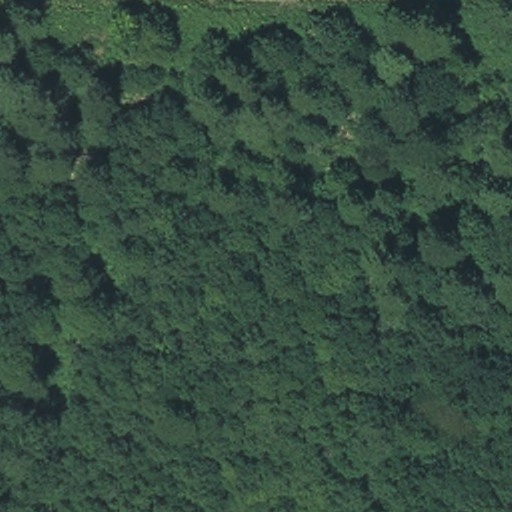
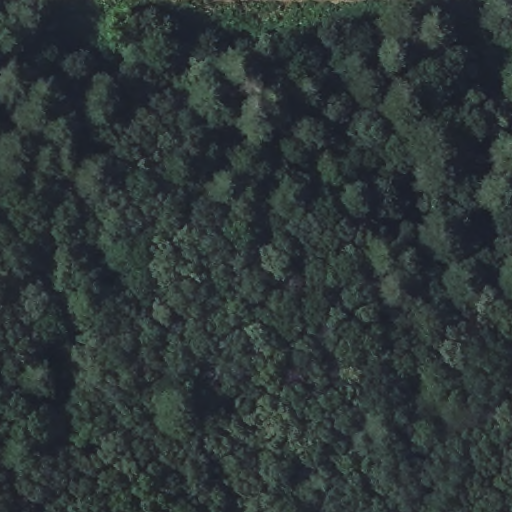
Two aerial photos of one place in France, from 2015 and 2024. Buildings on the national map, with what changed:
[]

